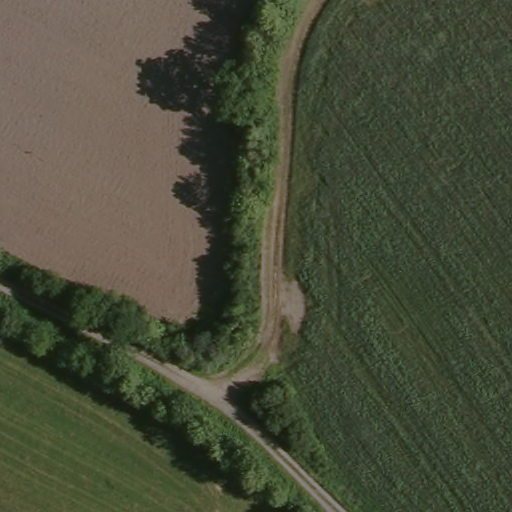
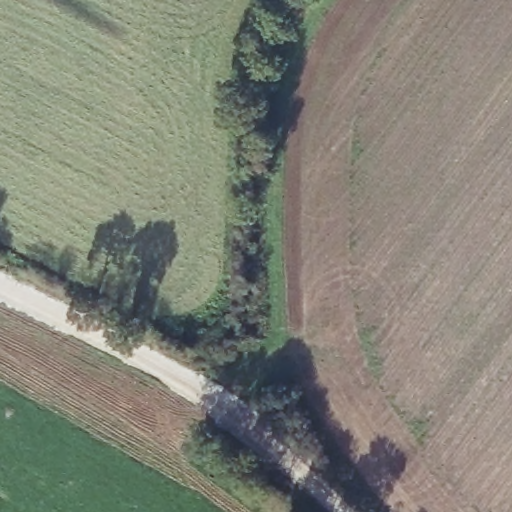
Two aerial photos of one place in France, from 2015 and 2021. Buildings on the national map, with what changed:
[]

